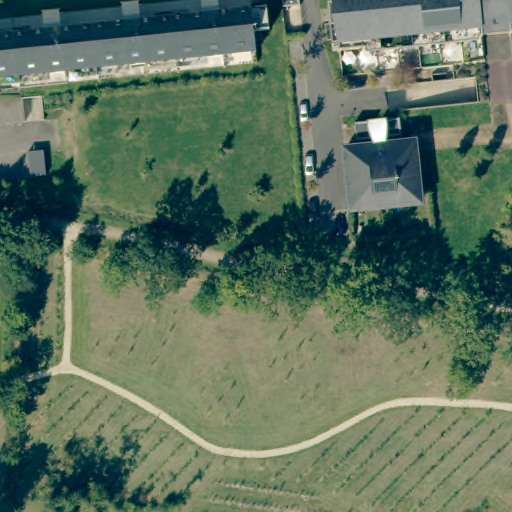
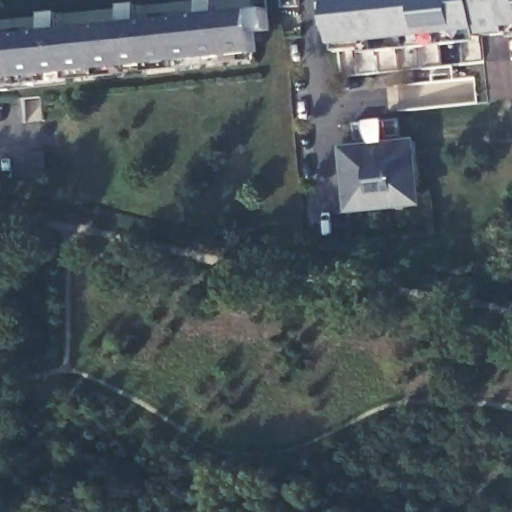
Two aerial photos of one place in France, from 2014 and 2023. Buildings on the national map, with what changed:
unchanged [(345,57),(343,50),(337,51),(331,0),(512,0),(512,39),(345,57)]
unchanged [(259,32),(262,53),(0,81),(0,37),(52,32),(54,52),(68,51),(66,31),(132,24),(134,44),(147,42),(145,22),(210,16),(212,36),(226,35),(223,14),(272,9),(275,31),(259,32)]
unchanged [(385,125),(400,124),(401,142),(387,142),(385,125)]
unchanged [(355,128),(369,127),(371,145),(356,146),(355,128)]
unchanged [(345,155),(376,151),(383,150),(415,147),(420,197),(421,207),(403,210),(368,213),(352,215),(351,205),(345,155)]

